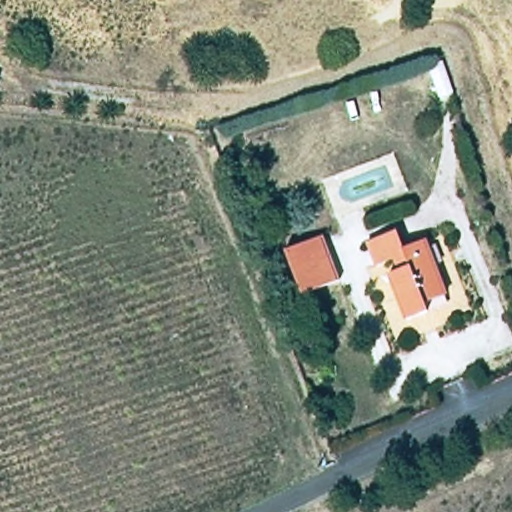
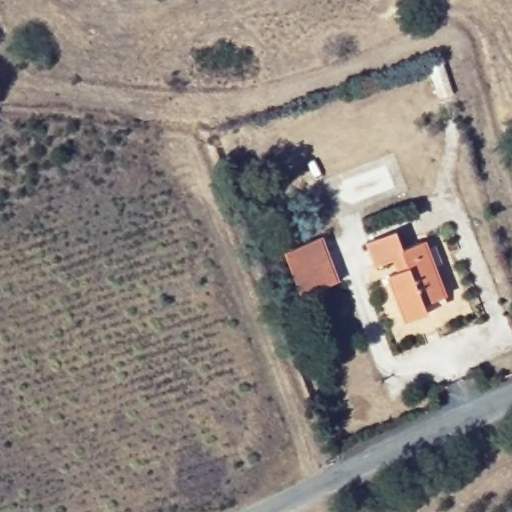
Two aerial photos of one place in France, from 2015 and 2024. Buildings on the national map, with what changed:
unchanged [(402,230),(410,252),(433,247),(448,302),(426,308),(428,319),(403,326),(386,265),(380,268),(373,240),(402,230)]
unchanged [(324,239),(338,282),(299,295),(286,252),(324,239)]

